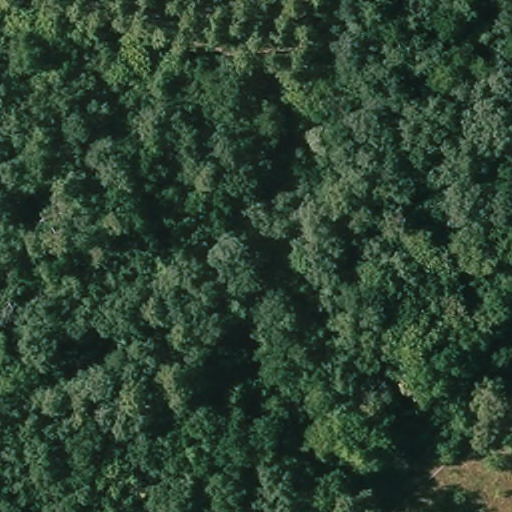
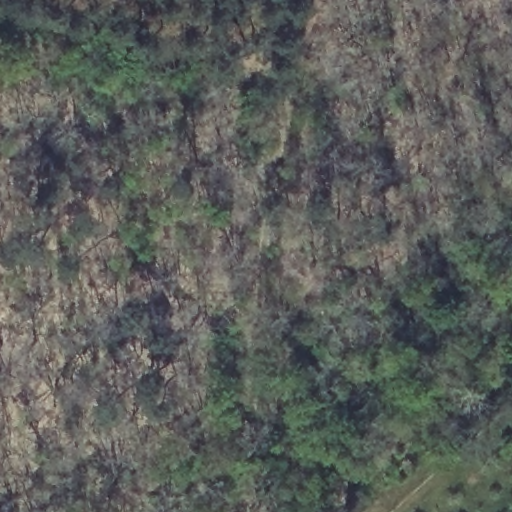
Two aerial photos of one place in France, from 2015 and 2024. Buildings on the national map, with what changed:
[]

